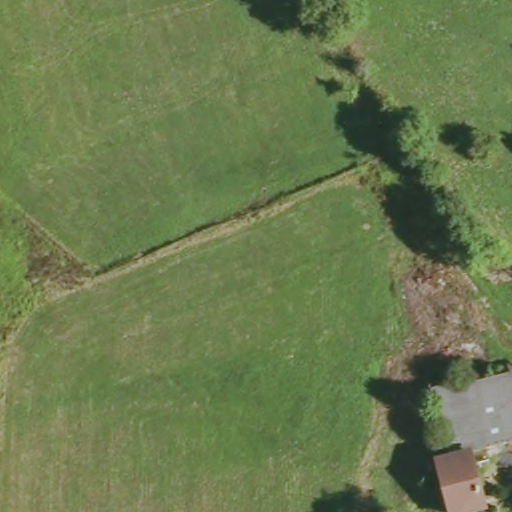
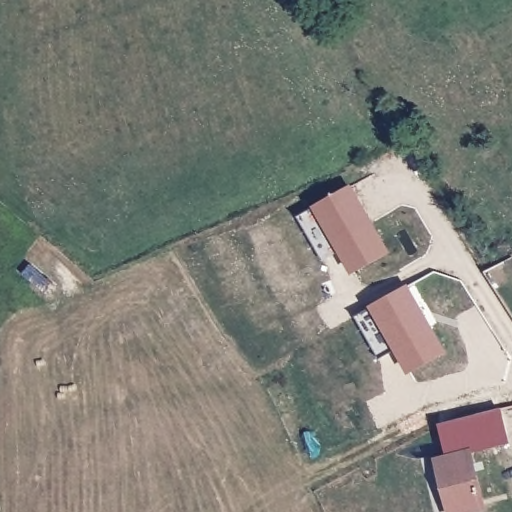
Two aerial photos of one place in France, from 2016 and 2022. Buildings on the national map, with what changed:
new [(387,253),(353,271),(340,250),(324,260),(299,217),(350,189),(387,253)]
new [(397,351),(380,360),(356,317),(408,288),(445,353),(410,372),(397,351)]
new [(509,442),(471,455),(450,460),(440,424),(501,409),(509,442)]
unchanged [(486,510),(479,512),(449,512),(436,464),(450,460),(471,455),(486,510)]

